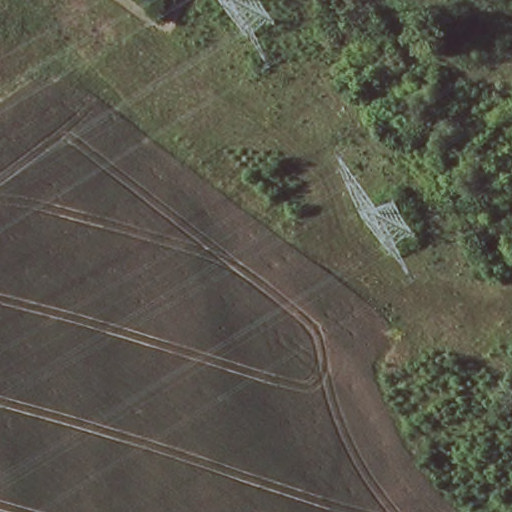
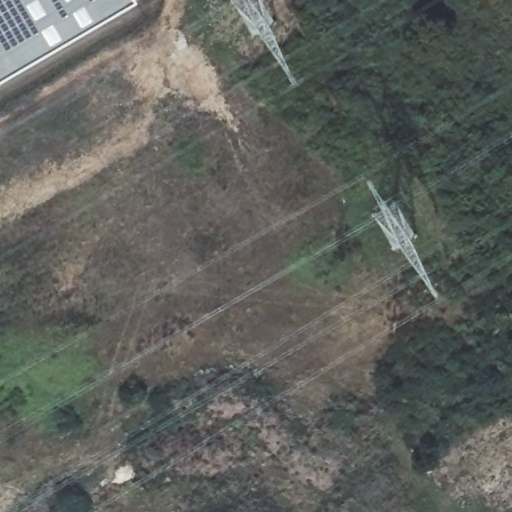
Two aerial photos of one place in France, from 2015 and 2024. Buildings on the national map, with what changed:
new [(0,78),(0,0),(134,0),(0,78)]

